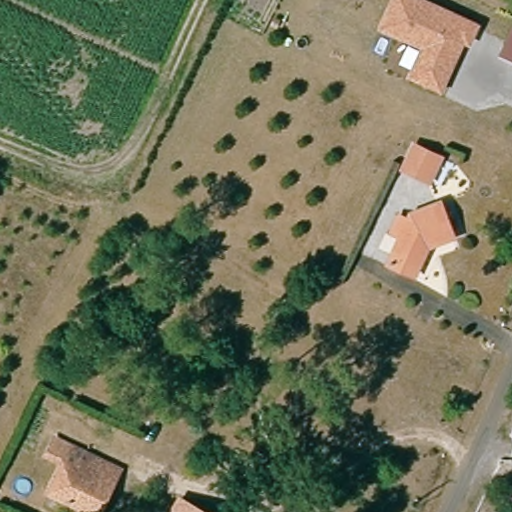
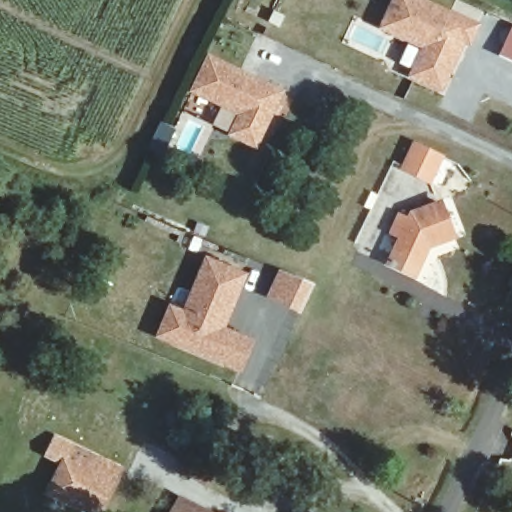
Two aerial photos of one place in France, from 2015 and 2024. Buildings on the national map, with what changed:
unchanged [(439,85),(409,72),(422,43),(380,24),(391,0),(428,0),(475,21),(467,38),(461,36),(452,56),(439,85)]
unchanged [(512,28),(512,61),(499,55),(512,28)]
new [(240,116),(190,92),(207,55),(285,92),(256,149),(229,136),(240,116)]
unchanged [(422,172),(406,165),(417,141),(443,153),(436,168),(432,177),(422,172)]
unchanged [(385,261),(396,235),(387,230),(395,212),(405,216),(407,212),(436,200),(449,233),(424,243),(411,273),(385,261)]
new [(156,340),(169,307),(184,314),(205,259),(247,275),(226,331),(254,341),(241,373),(156,340)]
new [(268,299),(278,272),(314,284),(301,314),(268,299)]
unchanged [(84,512),(46,494),(60,464),(45,457),(52,439),(113,467),(117,469),(98,512),(84,512)]
unchanged [(212,512),(172,512),(181,495),(212,512)]

